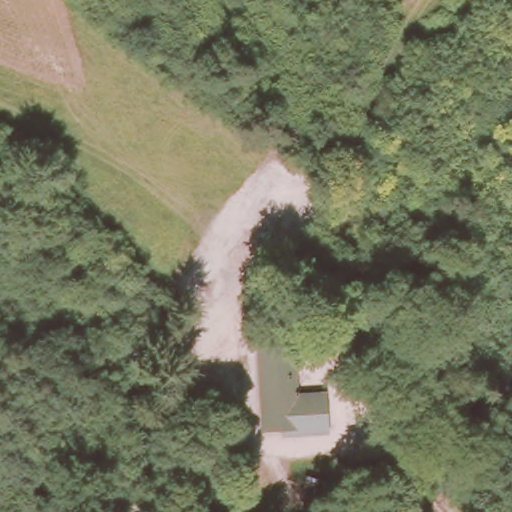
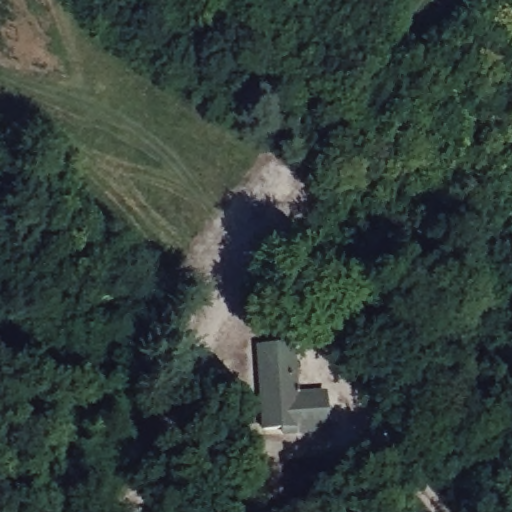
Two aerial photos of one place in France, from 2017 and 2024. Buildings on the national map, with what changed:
unchanged [(331,432),(282,436),(282,431),(262,432),(255,326),(294,324),(297,393),(326,391),(331,432)]

